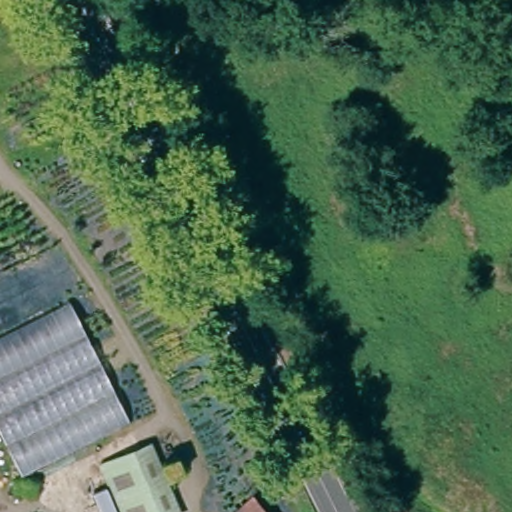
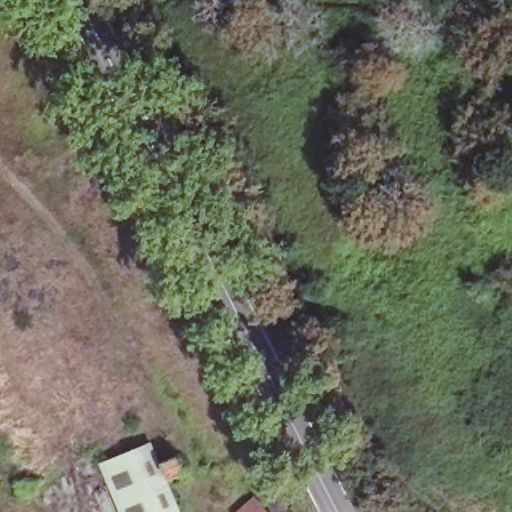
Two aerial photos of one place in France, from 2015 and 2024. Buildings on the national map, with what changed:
demolished [(128,421),(20,473),(0,434),(0,336),(66,301),(128,421)]
unchanged [(151,442),(160,462),(175,454),(181,472),(165,479),(180,512),(119,512),(97,463),(151,442)]
new [(255,494),(270,512),(235,512),(255,494)]

